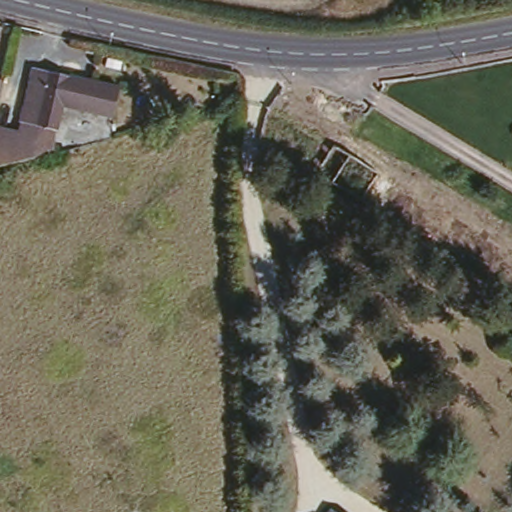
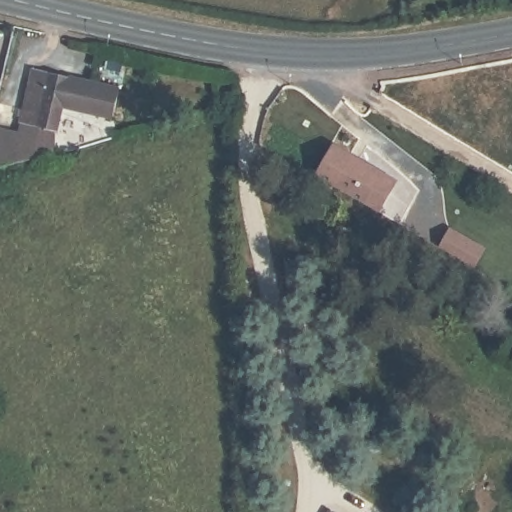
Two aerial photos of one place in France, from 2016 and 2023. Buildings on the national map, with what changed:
unchanged [(123,90),(117,120),(61,107),(55,133),(40,131),(31,160),(0,169),(0,134),(17,139),(33,67),(123,90)]
new [(396,183),(377,213),(313,178),(332,147),(396,183)]
new [(485,251),(475,272),(437,252),(447,231),(485,251)]
unchanged [(357,512),(330,512),(337,500),(357,512)]

